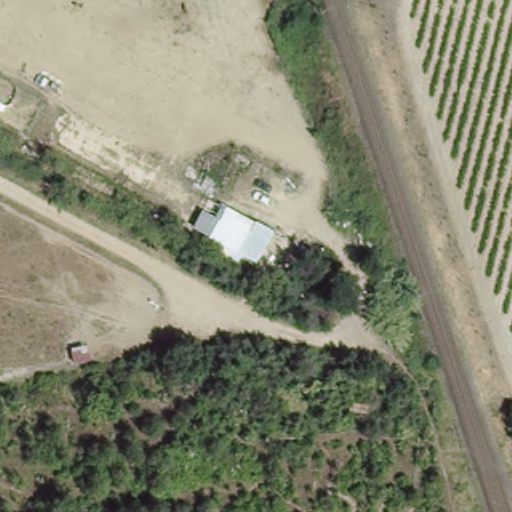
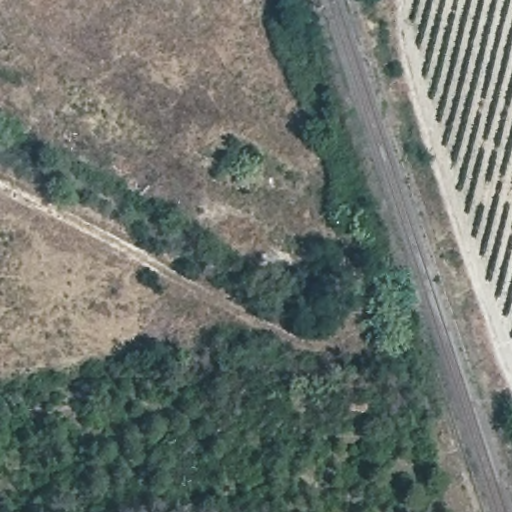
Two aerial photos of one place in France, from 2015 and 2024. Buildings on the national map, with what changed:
new [(274,230),(257,263),(194,231),(213,197),(274,230)]

